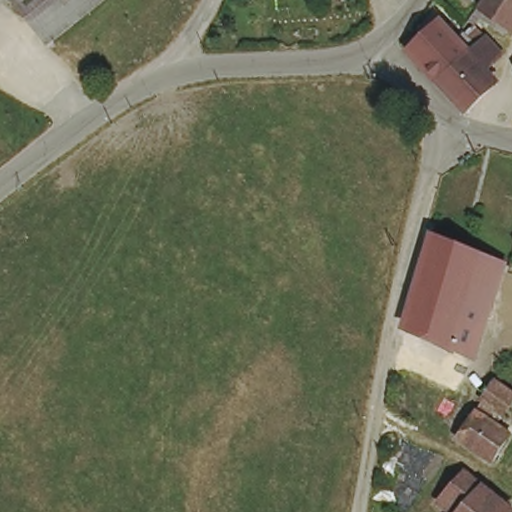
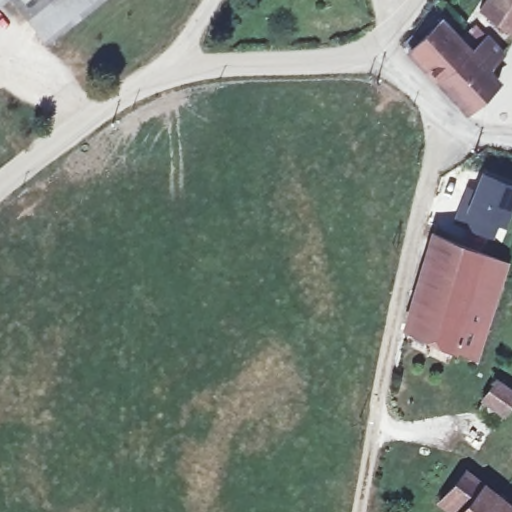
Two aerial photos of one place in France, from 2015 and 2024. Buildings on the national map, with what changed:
unchanged [(22,0),(103,0),(54,39),(22,0)]
unchanged [(512,0),(512,22),(480,0),(512,0)]
unchanged [(485,33),(504,51),(487,67),(498,78),(470,105),(440,78),(425,64),(426,61),(410,44),(437,17),(453,35),(468,50),(480,38),(485,33)]
new [(505,225),(498,222),(493,239),(451,222),(459,200),(466,203),(480,171),(512,184),(512,207),(505,225)]
unchanged [(433,232),(504,257),(472,351),(402,326),(433,232)]
unchanged [(502,417),(512,424),(512,430),(499,451),(463,430),(497,374),(512,383),(512,400),(502,417)]
unchanged [(463,509),(445,494),(469,465),(512,501),(512,512),(461,512),(463,509)]

